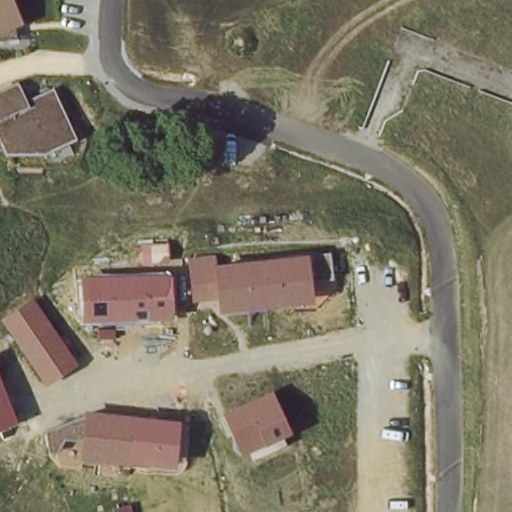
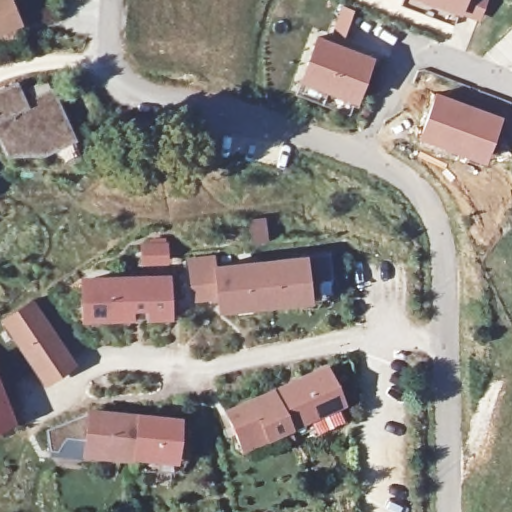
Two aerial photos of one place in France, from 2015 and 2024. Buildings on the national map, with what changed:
unchanged [(10,0),(20,22),(0,32),(0,0),(10,0)]
new [(426,0),(488,0),(478,22),(426,0)]
new [(300,80),(316,35),(375,56),(357,103),(300,80)]
unchanged [(44,152),(4,155),(0,147),(0,91),(16,83),(23,99),(52,87),(73,138),(44,152)]
new [(437,91),(505,115),(485,163),(419,137),(437,91)]
unchanged [(177,164),(155,165),(154,148),(176,146),(177,164)]
unchanged [(332,284),(313,287),(315,301),(219,312),(218,299),(194,302),(191,258),(217,257),(217,263),(330,254),(332,284)]
unchanged [(88,324),(84,279),(171,275),(174,318),(88,324)]
unchanged [(48,385),(2,322),(33,301),(76,363),(48,385)]
new [(240,454),(222,412),(326,366),(344,407),(240,454)]
unchanged [(18,421),(0,427),(0,372),(18,421)]
unchanged [(175,468),(81,461),(83,443),(65,442),(57,455),(49,453),(46,432),(90,413),(179,421),(175,468)]

